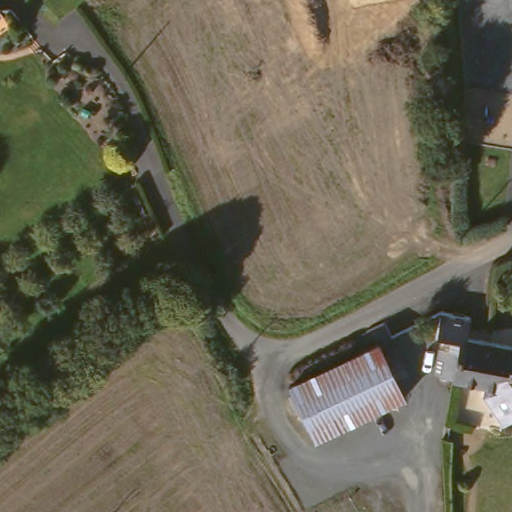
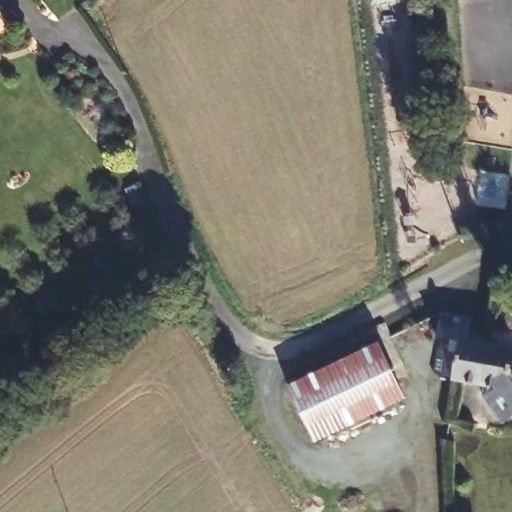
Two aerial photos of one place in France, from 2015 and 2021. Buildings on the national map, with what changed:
unchanged [(482,400),(484,387),(453,381),(454,377),(426,372),(429,353),(438,355),(442,343),(428,340),(433,320),(463,327),(459,345),(512,352),(512,355),(510,365),(512,364),(512,420),(496,428),(482,400)]
unchanged [(293,392),(378,346),(406,398),(319,444),(293,392)]

